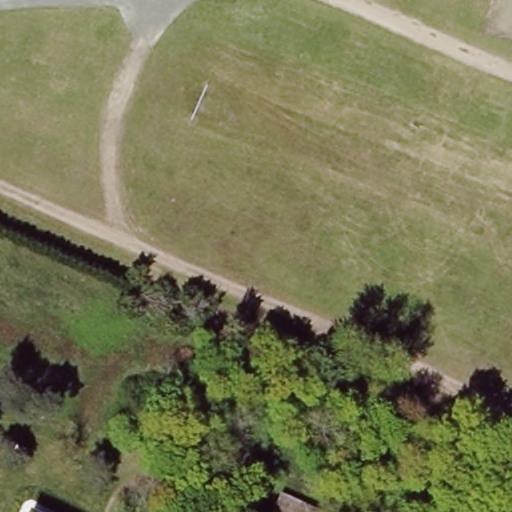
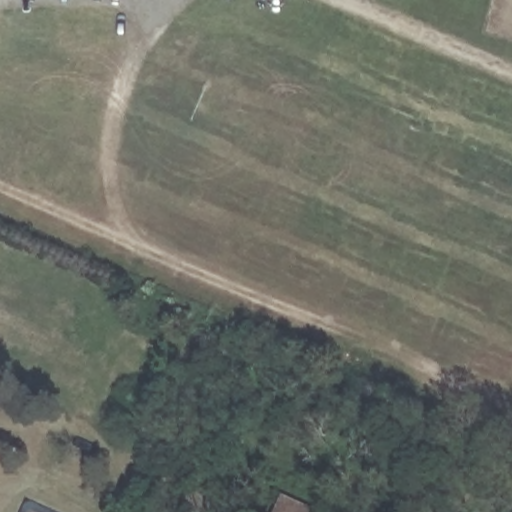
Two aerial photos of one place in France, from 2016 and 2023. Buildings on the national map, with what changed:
unchanged [(324,512),(277,512),(284,496),(324,512)]

